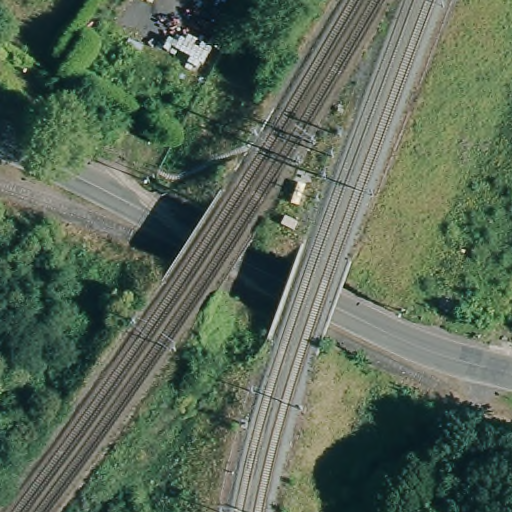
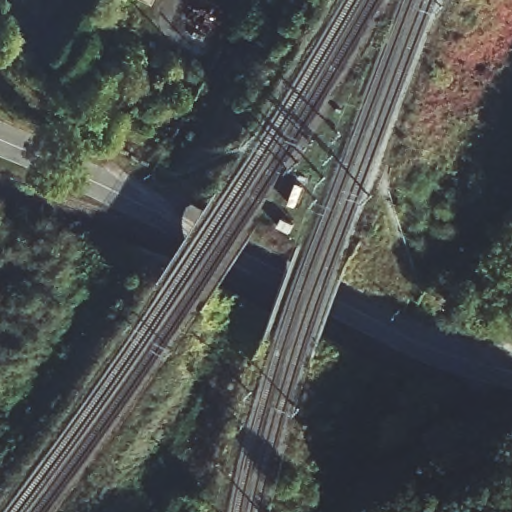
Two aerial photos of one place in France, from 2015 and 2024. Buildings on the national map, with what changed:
unchanged [(155,1),(152,0),(155,0),(155,1)]

